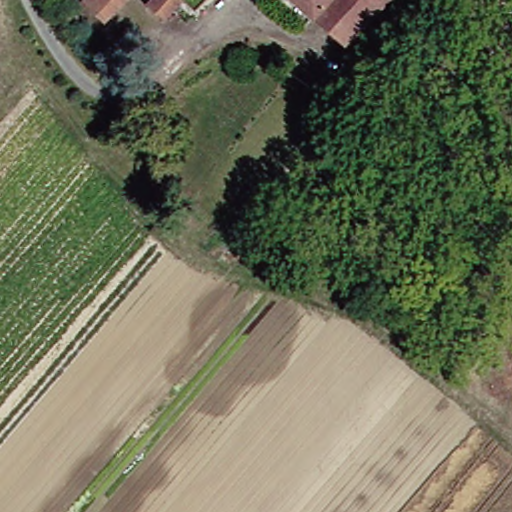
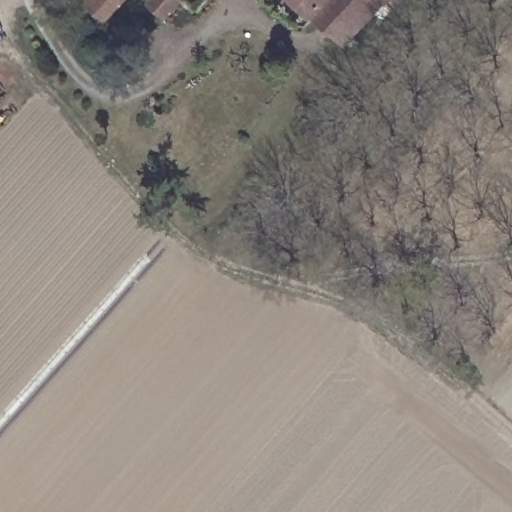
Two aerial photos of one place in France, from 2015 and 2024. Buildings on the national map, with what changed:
unchanged [(131,0),(115,17),(97,0),(131,0)]
unchanged [(170,0),(162,9),(152,0),(170,0)]
unchanged [(326,14),(322,17),(305,0),(402,0),(357,45),(326,14)]

